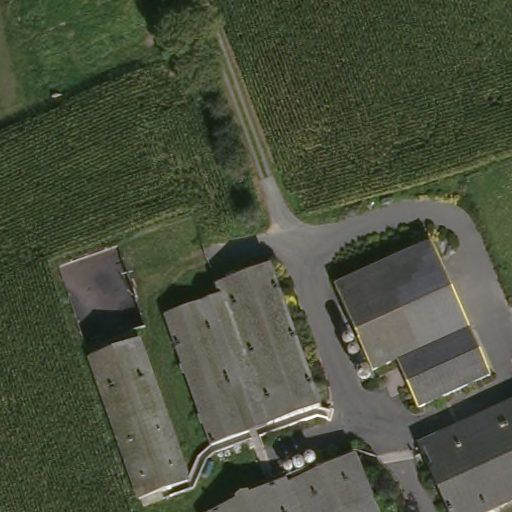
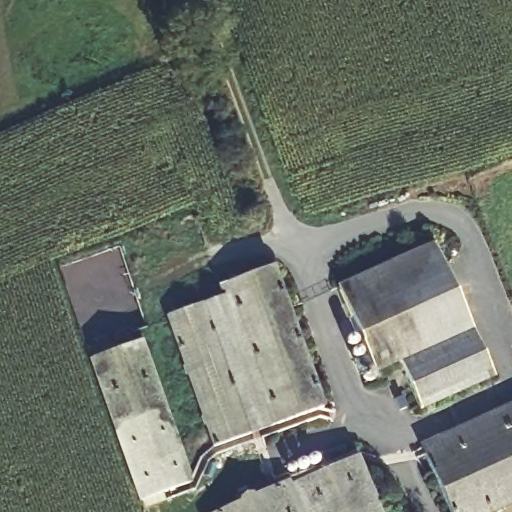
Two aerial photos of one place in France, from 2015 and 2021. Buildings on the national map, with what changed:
unchanged [(422,414),(402,368),(373,379),(337,294),(345,291),(351,262),(426,231),(491,385),(422,414)]
unchanged [(323,411),(211,448),(168,317),(221,300),(218,291),(277,271),(323,411)]
unchanged [(139,342),(183,487),(135,502),(89,356),(139,342)]
unchanged [(444,512),(419,453),(512,411),(512,499),(483,512),(444,512)]
unchanged [(294,487),(363,460),(384,512),(214,512),(292,481),(294,487)]

